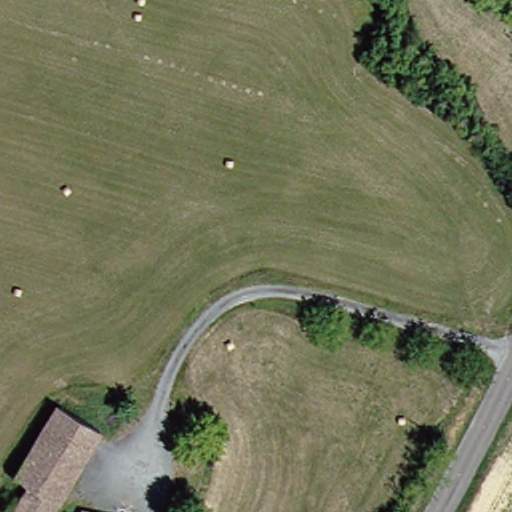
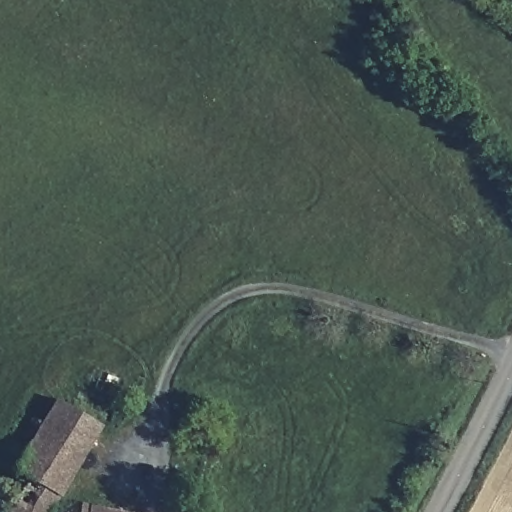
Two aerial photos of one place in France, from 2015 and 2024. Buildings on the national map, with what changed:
unchanged [(43,512),(3,512),(22,476),(12,465),(52,403),(96,427),(43,512)]
unchanged [(68,506),(105,512),(67,512),(68,506)]

